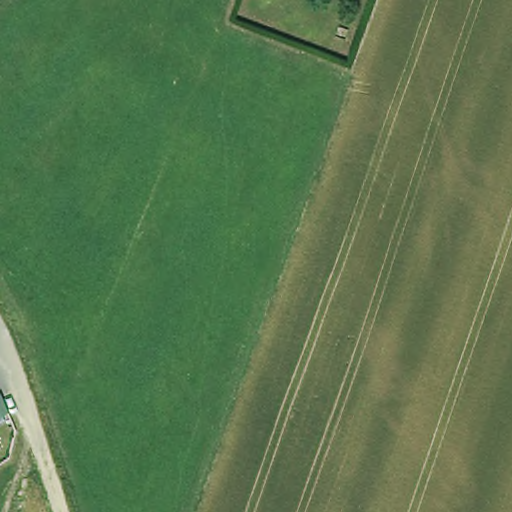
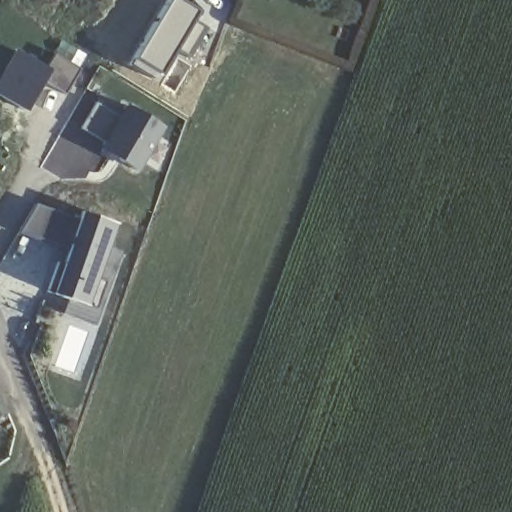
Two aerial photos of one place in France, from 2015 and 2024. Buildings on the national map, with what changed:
new [(168,0),(181,0),(198,10),(195,22),(205,28),(187,60),(175,48),(154,80),(130,65),(168,0)]
new [(42,80),(22,111),(0,98),(0,70),(13,48),(45,67),(52,53),(79,69),(64,94),(42,80)]
new [(118,116),(126,103),(165,125),(137,173),(100,150),(104,142),(81,130),(95,102),(118,116)]
new [(60,134),(103,155),(95,173),(89,172),(87,180),(60,179),(39,167),(60,134)]
new [(79,219),(81,211),(116,223),(108,247),(121,251),(95,325),(61,314),(66,298),(47,291),(56,262),(63,265),(67,249),(17,233),(35,204),(79,219)]

